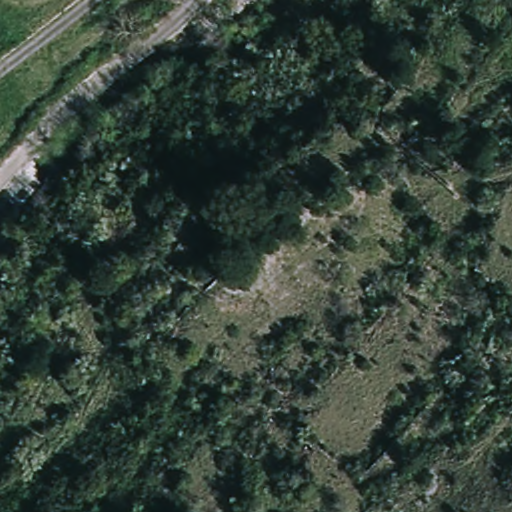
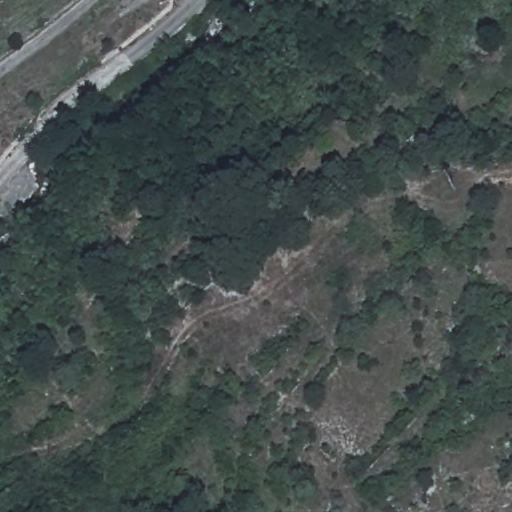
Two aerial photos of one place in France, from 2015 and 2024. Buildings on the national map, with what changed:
[]

